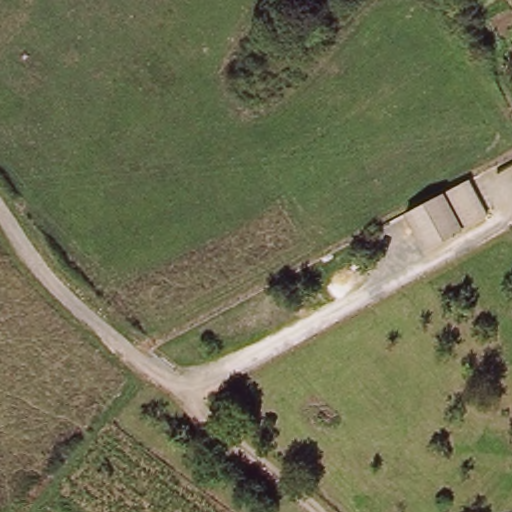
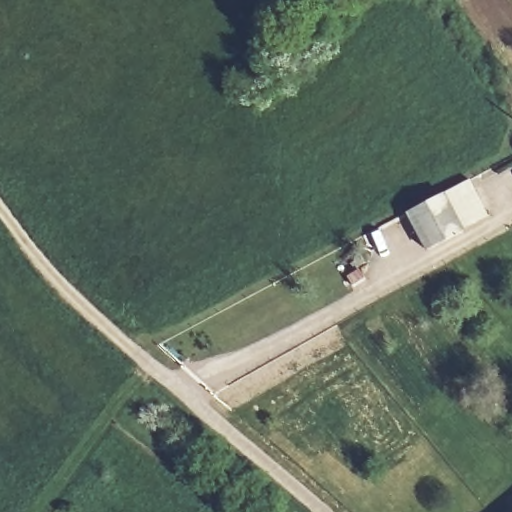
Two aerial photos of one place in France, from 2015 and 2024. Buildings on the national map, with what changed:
unchanged [(490,215),(490,216),(472,225),(464,229),(465,230),(465,231),(430,250),(430,249),(409,212),(471,180),(490,215)]

